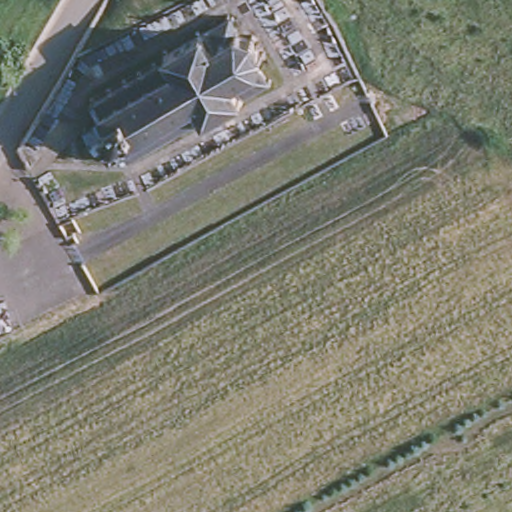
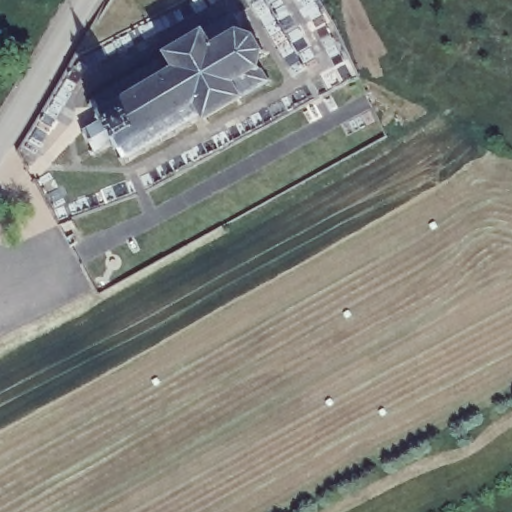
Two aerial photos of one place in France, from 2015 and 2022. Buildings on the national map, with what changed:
unchanged [(85,132),(87,135),(102,126),(101,125),(97,127),(95,122),(99,120),(94,111),(90,114),(88,110),(92,108),(90,104),(93,102),(95,106),(109,99),(106,95),(110,92),(112,96),(124,90),(121,85),(125,84),(127,88),(139,81),(137,76),(140,75),(142,79),(154,72),(152,68),(155,66),(157,70),(169,64),(167,61),(165,64),(162,60),(165,59),(162,55),(166,53),(169,57),(198,40),(195,36),(199,34),(201,37),(211,32),(209,28),(217,24),(219,28),(227,24),(225,20),(229,19),(230,21),(232,20),(234,23),(235,22),(240,30),(236,32),(237,34),(237,39),(250,42),(252,39),(255,41),(252,45),(259,56),(264,55),(265,59),(260,60),(257,71),(267,85),(270,83),(271,86),(269,87),(270,90),(267,91),(265,89),(242,102),(240,104),(242,108),(239,110),(237,105),(207,123),(209,127),(205,129),(204,125),(201,126),(199,123),(202,121),(201,120),(190,126),(192,130),(189,132),(186,129),(174,135),(177,140),(174,141),(171,137),(159,144),(162,148),(159,150),(155,146),(144,153),(147,157),(143,159),(140,155),(127,162),(130,166),(127,169),(125,165),(120,167),(119,164),(122,161),(118,152),(114,155),(111,150),(115,149),(114,146),(99,155),(100,157),(97,160),(95,157),(94,158),(92,155),(94,154),(93,151),(94,149),(90,142),(87,141),(86,140),(84,141),(82,138),(85,136),(83,134),(85,132)]

